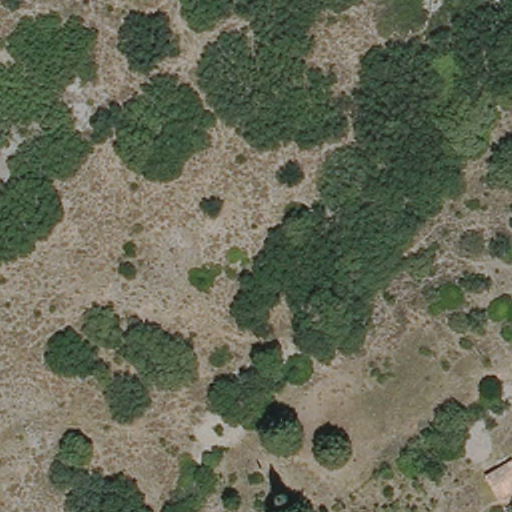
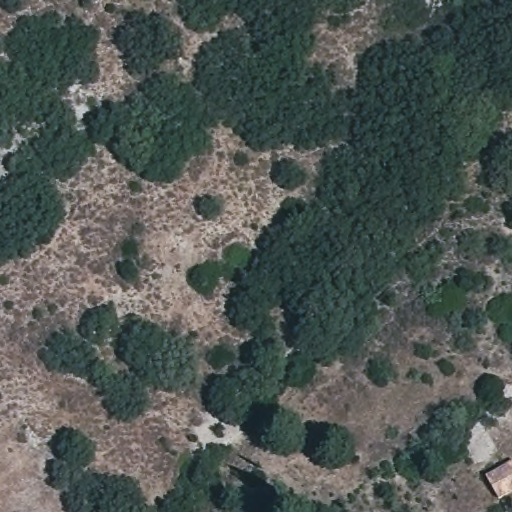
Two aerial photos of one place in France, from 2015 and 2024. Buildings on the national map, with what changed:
unchanged [(489,473),(512,464),(512,497),(495,500),(489,473)]

